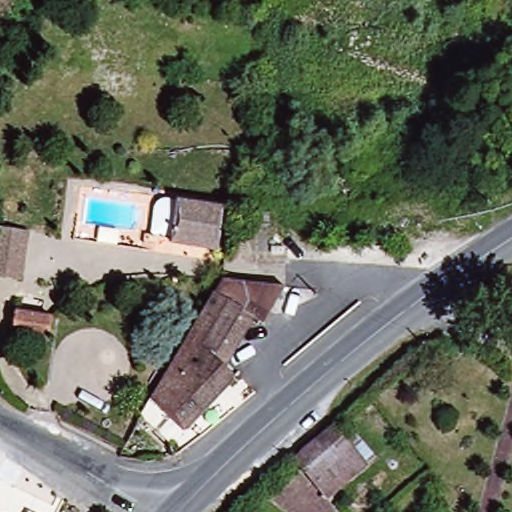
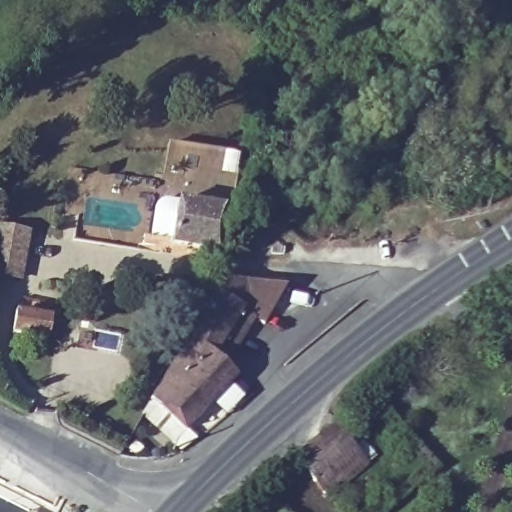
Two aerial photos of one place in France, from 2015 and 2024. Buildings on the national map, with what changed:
unchanged [(228,205),(222,249),(179,246),(178,251),(147,251),(151,233),(160,233),(169,197),(228,205)]
unchanged [(0,276),(0,232),(33,238),(23,280),(0,276)]
unchanged [(284,283),(259,320),(236,305),(206,351),(233,371),(214,391),(169,357),(215,280),(226,281),(284,283)]
unchanged [(13,342),(15,322),(50,326),(48,347),(13,342)]
unchanged [(181,424),(144,396),(169,357),(214,391),(181,424)]
unchanged [(361,462),(324,492),(292,457),(332,423),(361,462)]
unchanged [(0,497),(31,512),(0,512),(0,497)]

